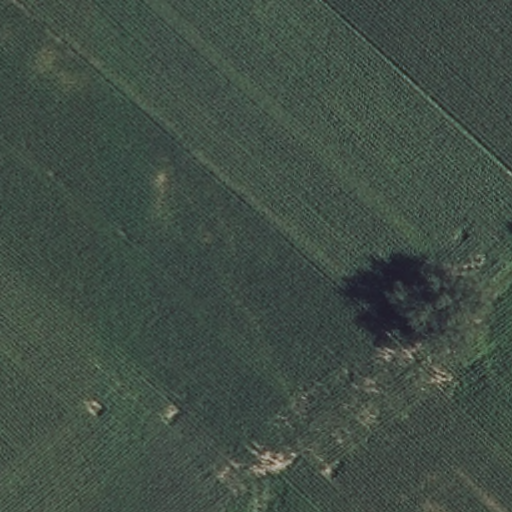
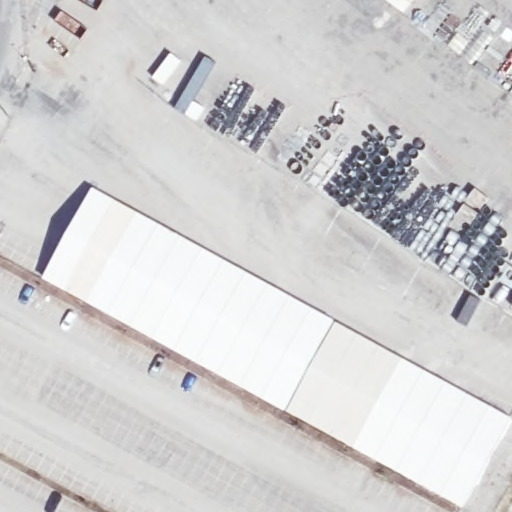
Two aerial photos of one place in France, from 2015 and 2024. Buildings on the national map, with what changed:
new [(463,507),(352,446),(287,411),(147,336),(43,278),(93,186),(336,321),(291,404),(334,428),(338,422),(352,433),(350,435),(356,439),(401,358),(512,418),(463,507)]
new [(510,306),(512,303),(512,307),(510,306)]

